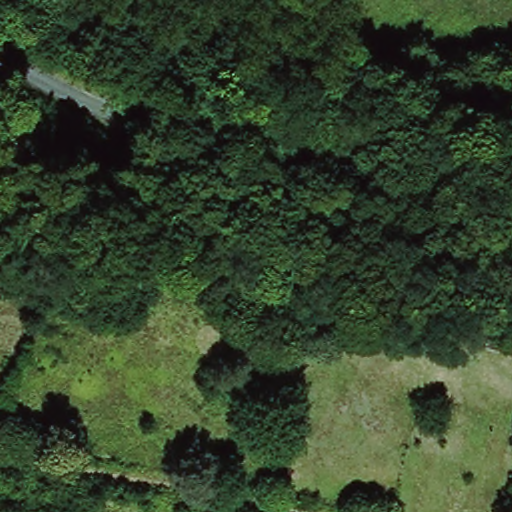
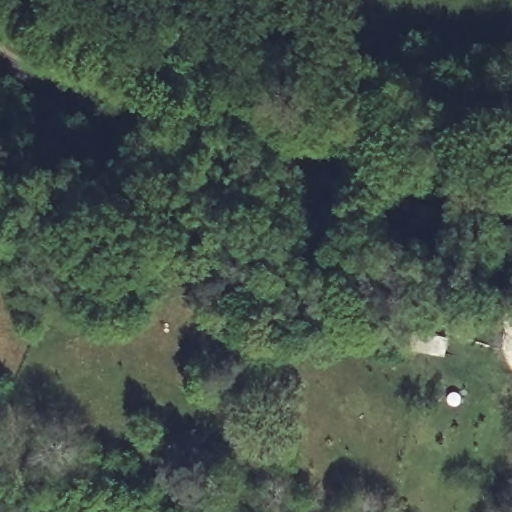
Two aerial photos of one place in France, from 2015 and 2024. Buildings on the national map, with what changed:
unchanged [(383,356),(364,354),(364,340),(383,341),(383,356)]

